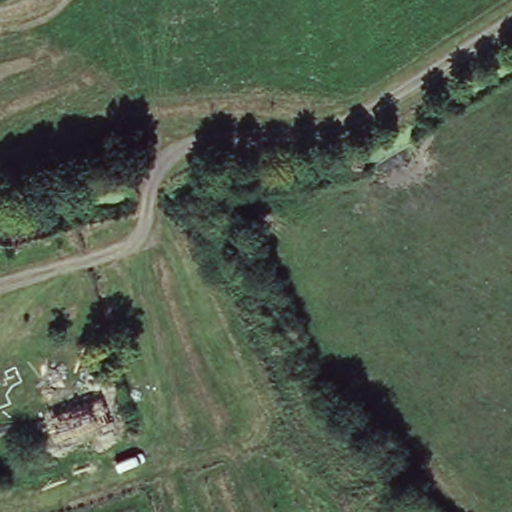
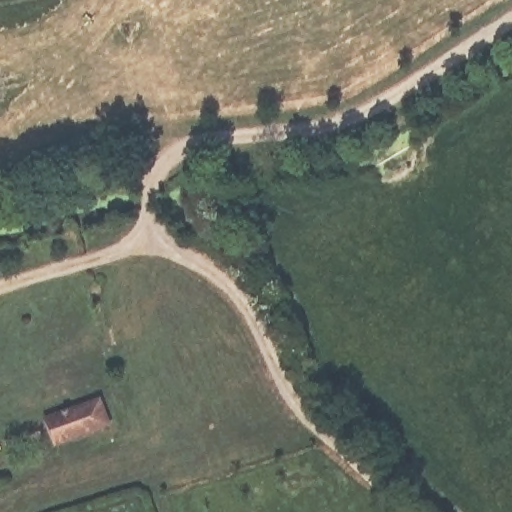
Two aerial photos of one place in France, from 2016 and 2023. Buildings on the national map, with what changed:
unchanged [(100,403),(108,428),(58,446),(49,421),(100,403)]

